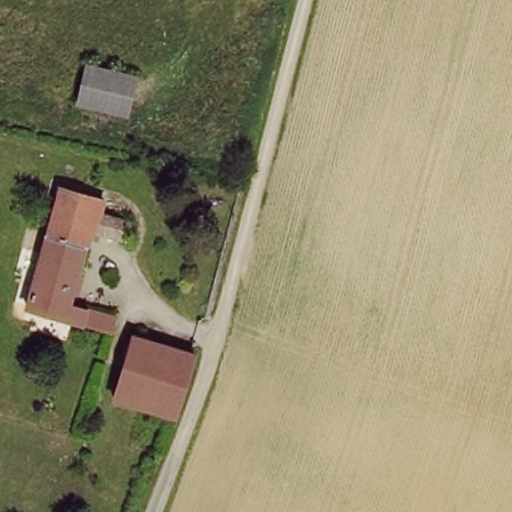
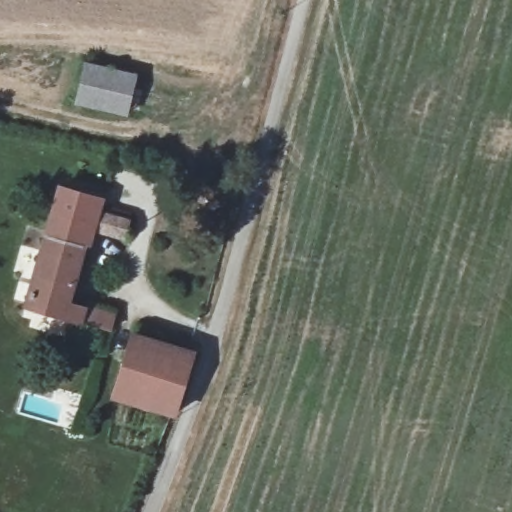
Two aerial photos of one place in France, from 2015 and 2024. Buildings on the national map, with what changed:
unchanged [(71,111),(81,74),(131,86),(123,123),(71,111)]
unchanged [(24,311),(26,301),(52,190),(100,202),(98,213),(128,220),(124,235),(86,226),(61,320),(24,311)]
unchanged [(169,420),(109,399),(130,337),(189,357),(169,420)]

